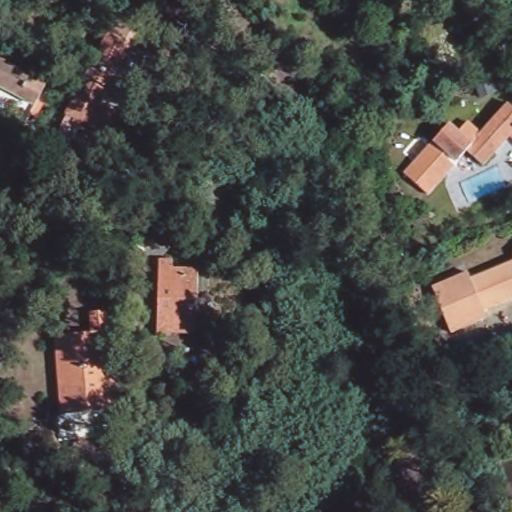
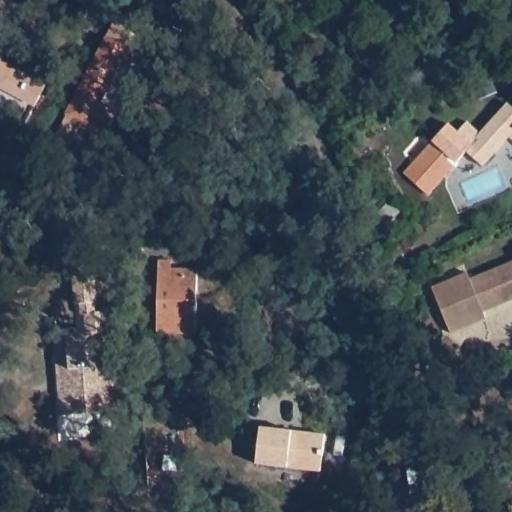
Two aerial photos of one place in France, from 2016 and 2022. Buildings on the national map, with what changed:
unchanged [(95,101),(111,110),(101,129),(62,108),(112,17),(137,31),(128,47),(125,46),(95,101)]
unchanged [(1,55),(0,57),(0,52),(1,55)]
unchanged [(44,85),(32,106),(0,89),(0,62),(44,85)]
unchanged [(512,134),(507,131),(485,166),(467,154),(435,203),(408,186),(445,130),(456,137),(463,125),(477,135),(501,100),(512,108),(512,134)]
unchanged [(192,334),(152,331),(154,260),(167,260),(167,269),(195,270),(192,334)]
unchanged [(487,316),(453,328),(436,282),(469,270),(472,278),(512,264),(512,295),(483,306),(487,316)]
unchanged [(48,337),(85,332),(83,317),(82,311),(100,309),(101,315),(106,357),(92,359),(94,377),(112,375),(117,408),(61,415),(55,381),(51,356),(48,337)]
new [(260,427),(326,433),(322,470),(257,464),(260,427)]

